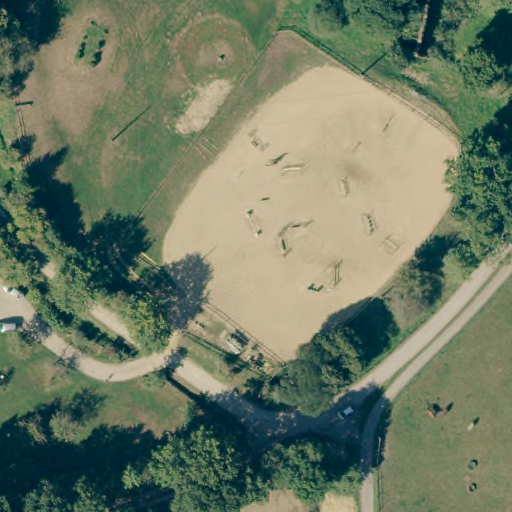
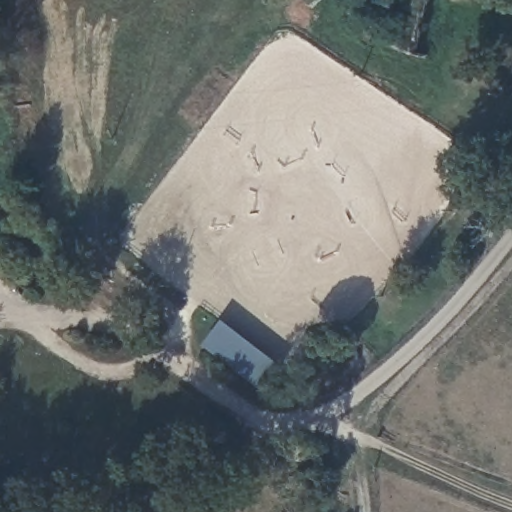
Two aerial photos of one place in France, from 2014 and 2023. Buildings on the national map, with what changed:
new [(284,368),(266,391),(205,345),(223,321),(284,368)]

